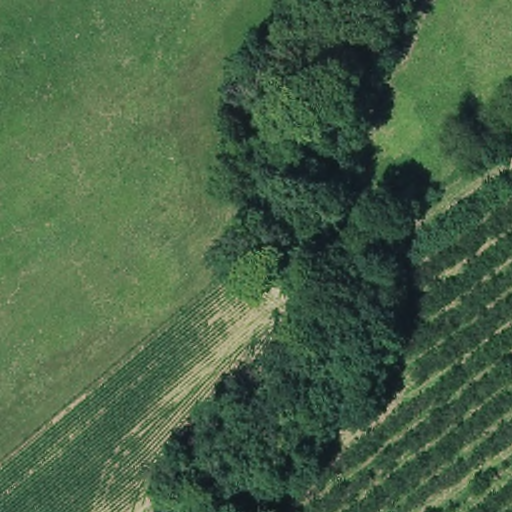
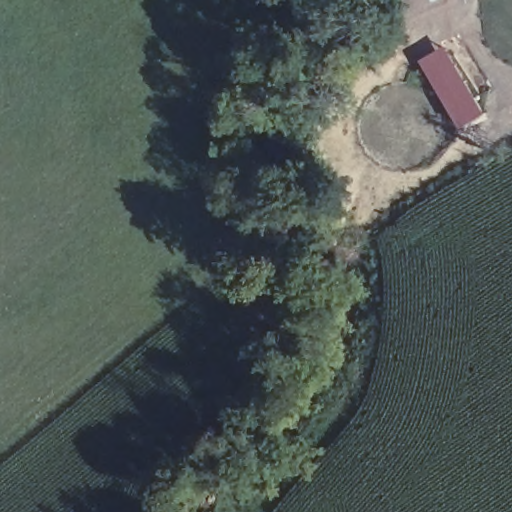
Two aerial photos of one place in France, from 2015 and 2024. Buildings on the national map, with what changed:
new [(422,60),(447,45),(487,113),(462,127),(422,60)]

